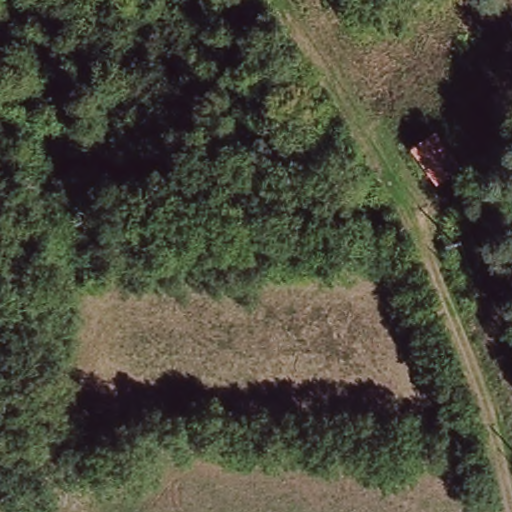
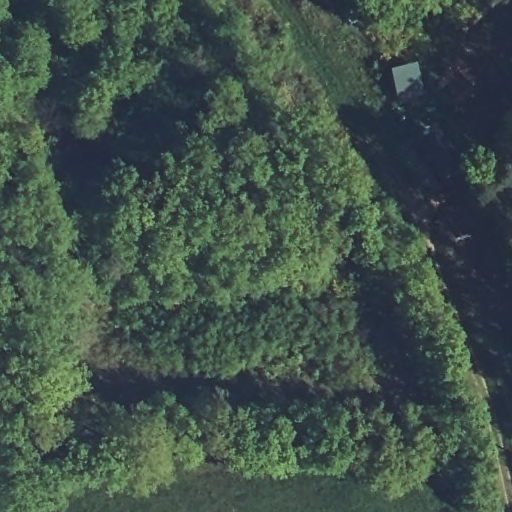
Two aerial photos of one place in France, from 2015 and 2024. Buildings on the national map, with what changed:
new [(420,69),(420,98),(395,98),(391,71),(420,69)]
unchanged [(437,134),(467,170),(450,185),(419,149),(437,134)]

